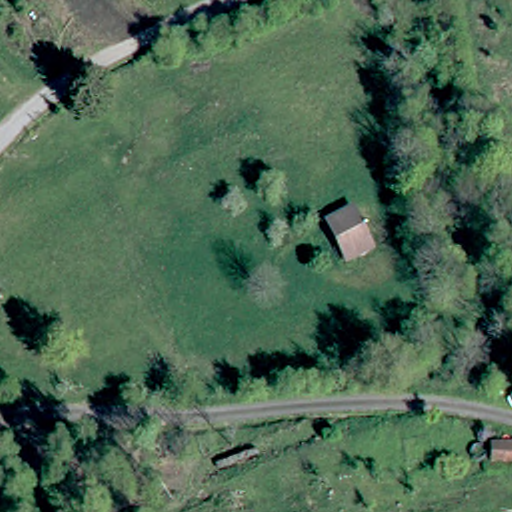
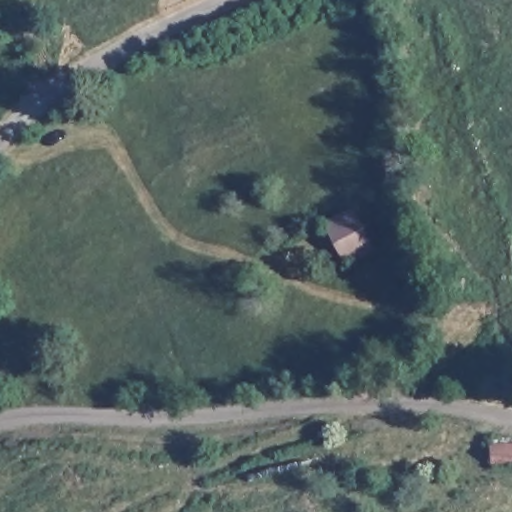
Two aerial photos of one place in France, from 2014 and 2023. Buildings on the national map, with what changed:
unchanged [(344,263),(324,230),(348,219),(366,251),(344,263)]
unchanged [(396,435),(408,432),(413,447),(399,450),(396,435)]
unchanged [(494,446),(512,447),(512,466),(493,465),(494,446)]
unchanged [(246,509),(233,511),(230,495),(243,494),(246,509)]

